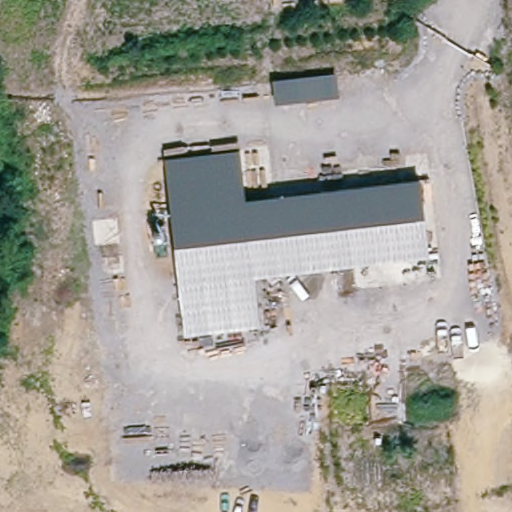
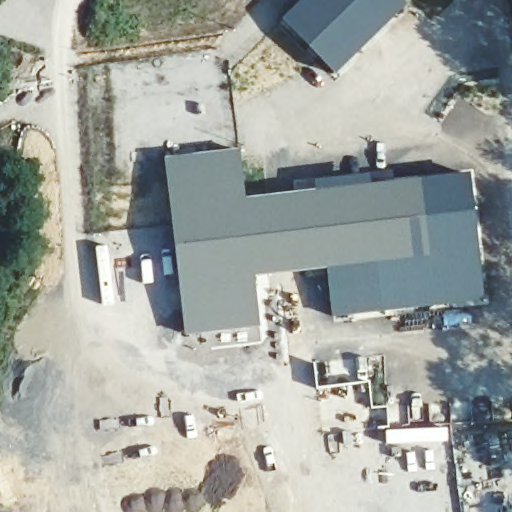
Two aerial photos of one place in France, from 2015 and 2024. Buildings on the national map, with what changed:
new [(303,0),(403,0),(409,6),(337,76),(283,20),(303,0)]
unchanged [(430,252),(256,272),(262,322),(186,331),(166,156),(242,147),(248,197),(421,177),(430,252)]
new [(485,301),(383,311),(377,258),(430,252),(422,181),(471,174),(485,301)]
new [(332,317),(326,265),(377,258),(383,311),(332,317)]

